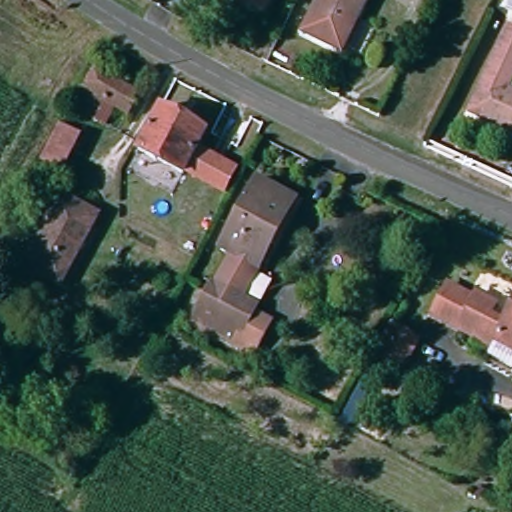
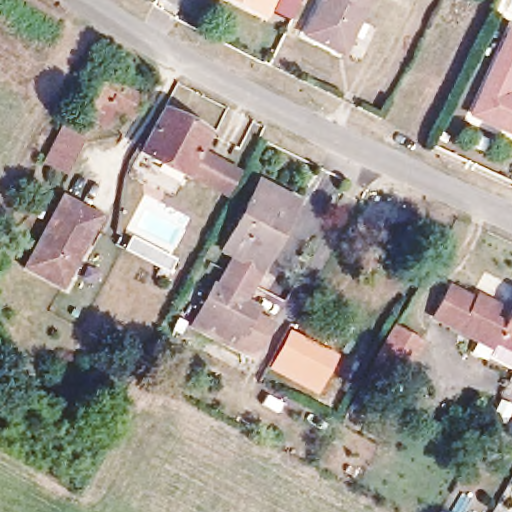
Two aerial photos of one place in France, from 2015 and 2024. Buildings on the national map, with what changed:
unchanged [(235,0),(273,0),(265,15),(235,0)]
unchanged [(354,18),(337,51),(309,36),(328,0),(371,0),(361,21),(354,18)]
unchanged [(469,113),(509,25),(512,26),(512,79),(506,92),(512,95),(512,133),(469,113)]
unchanged [(133,115),(106,101),(93,122),(78,115),(103,71),(144,96),(133,115)]
unchanged [(183,178),(143,154),(168,109),(207,134),(183,178)]
unchanged [(67,166),(51,158),(64,130),(81,139),(67,166)]
unchanged [(258,365),(230,350),(192,329),(212,287),(220,291),(237,257),(223,249),(255,188),(293,209),(271,252),(264,249),(255,264),(264,270),(245,306),(253,309),(265,315),(262,322),(276,330),(258,365)]
unchanged [(49,280),(29,268),(34,259),(64,202),(96,220),(89,233),(65,278),(60,286),(49,280)]
unchanged [(487,363),(491,354),(430,324),(434,315),(444,295),(450,285),(479,300),(482,295),(500,305),(493,318),(481,340),(489,344),(501,350),(512,356),(512,375),(487,363)]
unchanged [(489,344),(481,340),(493,318),(504,323),(512,307),(512,356),(501,350),(489,344)]
new [(289,329),(339,356),(319,395),(268,368),(289,329)]
unchanged [(417,353),(398,390),(371,375),(391,339),(417,353)]

